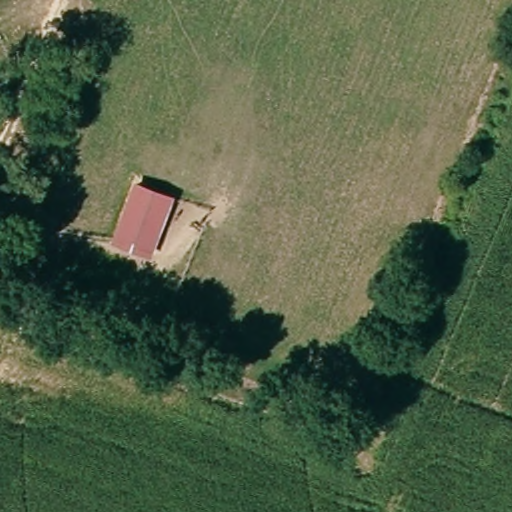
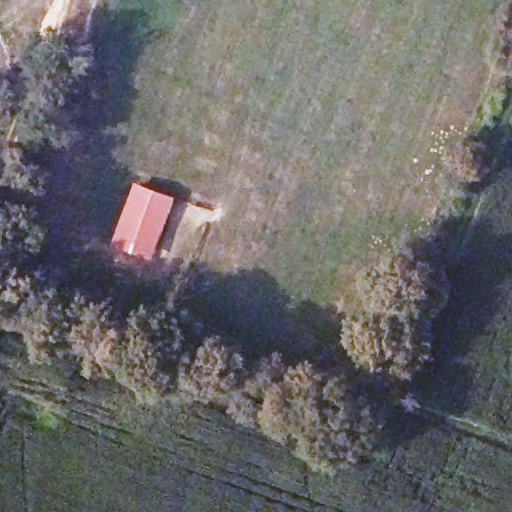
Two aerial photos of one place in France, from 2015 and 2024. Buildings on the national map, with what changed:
unchanged [(140,182),(179,196),(153,258),(115,243),(140,182)]

